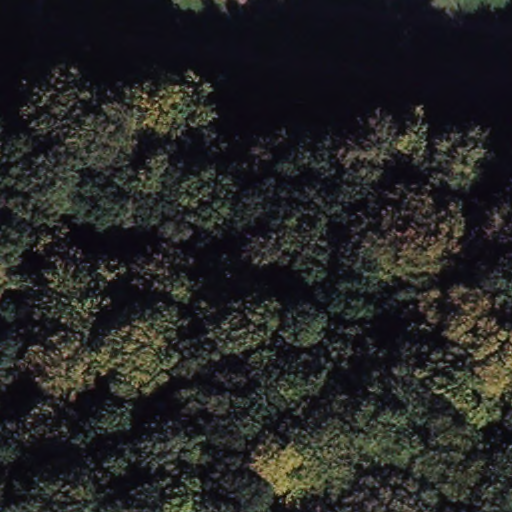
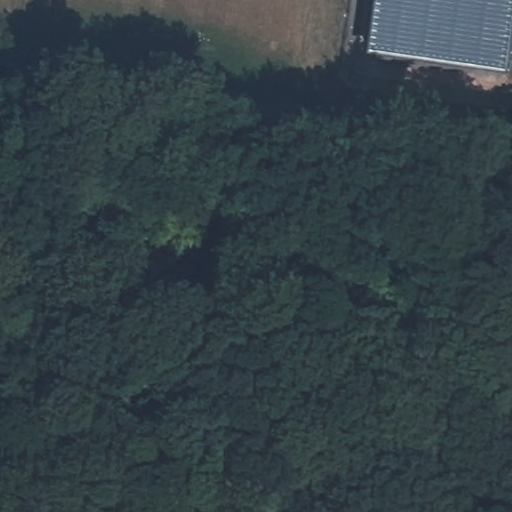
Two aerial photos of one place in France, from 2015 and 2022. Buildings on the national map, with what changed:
new [(363,57),(370,0),(511,0),(501,78),(363,57)]
new [(511,0),(512,0),(512,54),(501,78),(511,0)]

